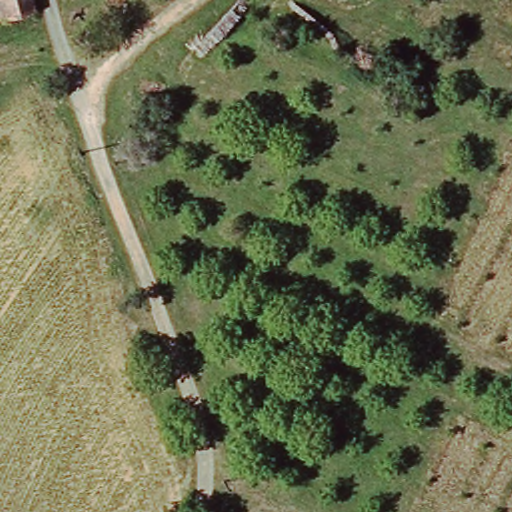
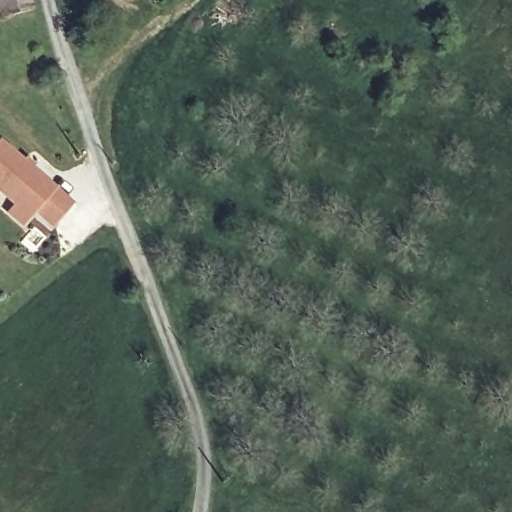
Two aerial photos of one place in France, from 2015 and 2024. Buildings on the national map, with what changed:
unchanged [(38,13),(0,19),(0,0),(35,0),(38,13)]
new [(0,145),(55,194),(72,209),(52,232),(35,217),(23,230),(6,215),(13,208),(0,196),(0,145)]

